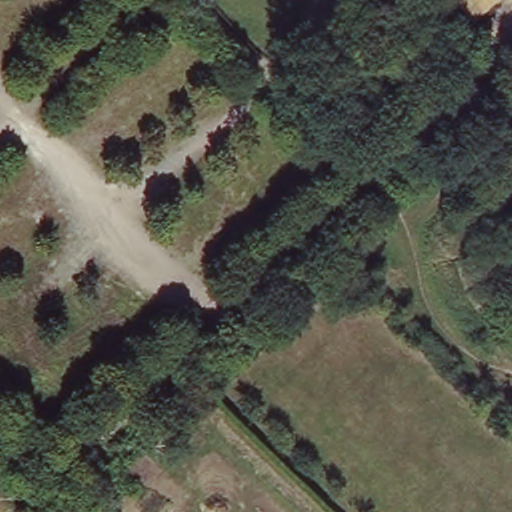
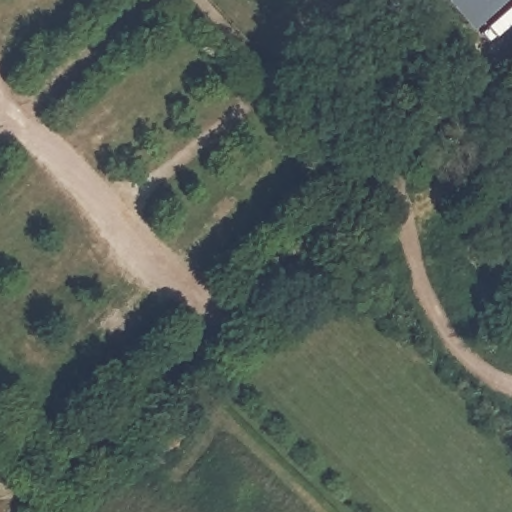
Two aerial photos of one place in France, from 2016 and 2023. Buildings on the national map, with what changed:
new [(446,0),(503,0),(475,27),(446,0)]

